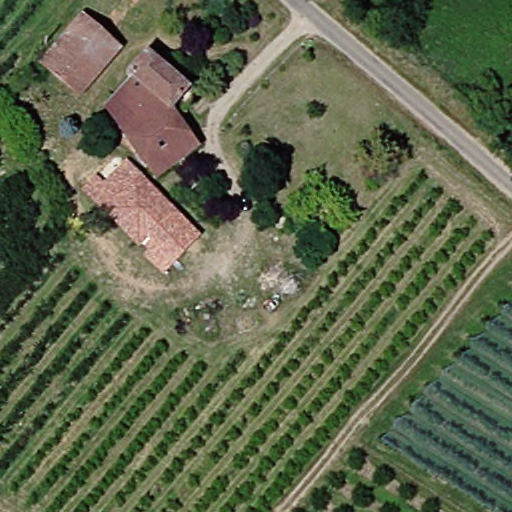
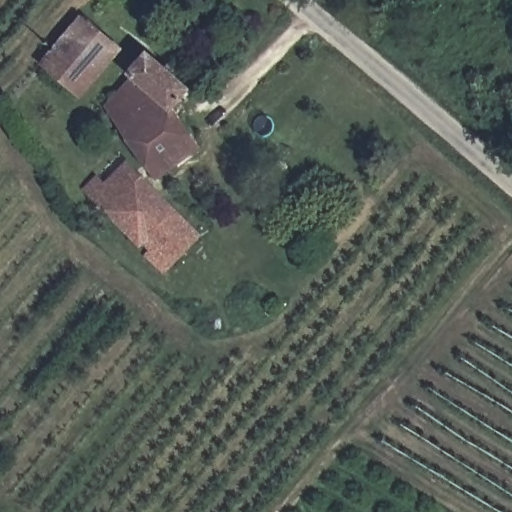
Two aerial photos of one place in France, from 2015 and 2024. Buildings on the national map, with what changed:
unchanged [(35,66),(75,20),(110,51),(71,97),(35,66)]
unchanged [(138,169),(97,113),(124,82),(119,77),(139,53),(182,90),(165,112),(182,135),(138,169)]
unchanged [(138,169),(182,135),(194,151),(149,186),(138,169)]
unchanged [(139,254),(90,205),(104,192),(112,184),(130,202),(137,196),(166,226),(139,254)]
unchanged [(197,237),(156,278),(135,257),(139,254),(166,226),(137,196),(149,186),(197,237)]

